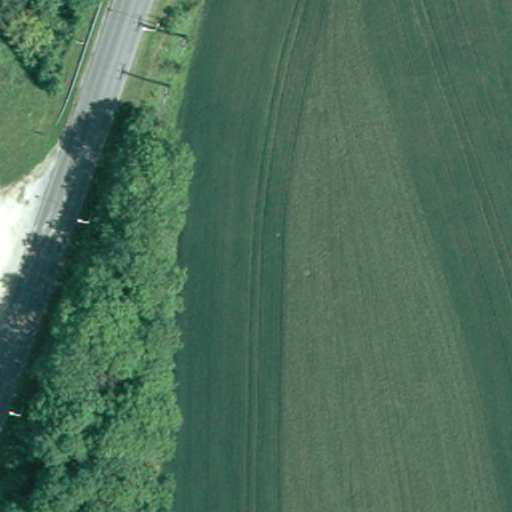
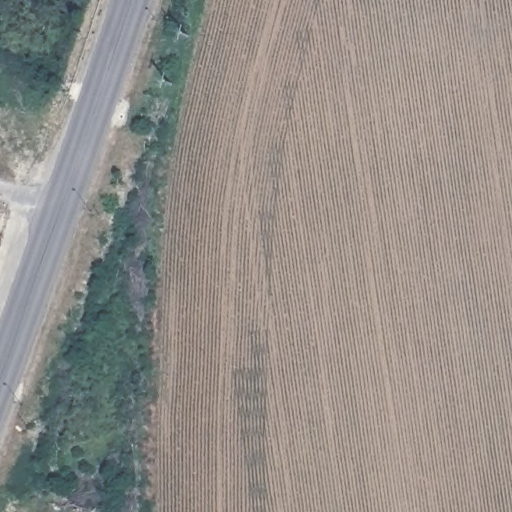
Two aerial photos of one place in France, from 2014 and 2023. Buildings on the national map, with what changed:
[]

